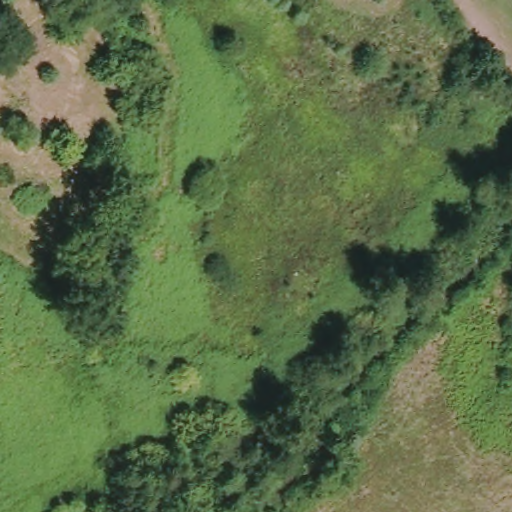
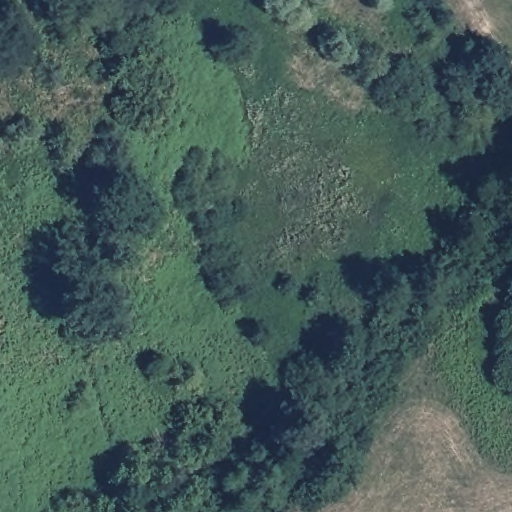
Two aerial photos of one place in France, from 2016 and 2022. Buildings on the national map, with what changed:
[]

